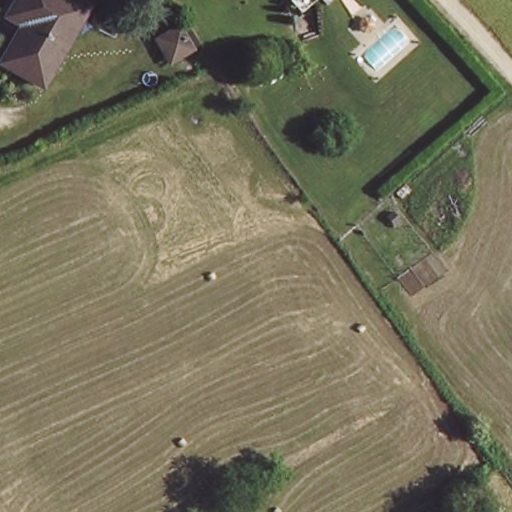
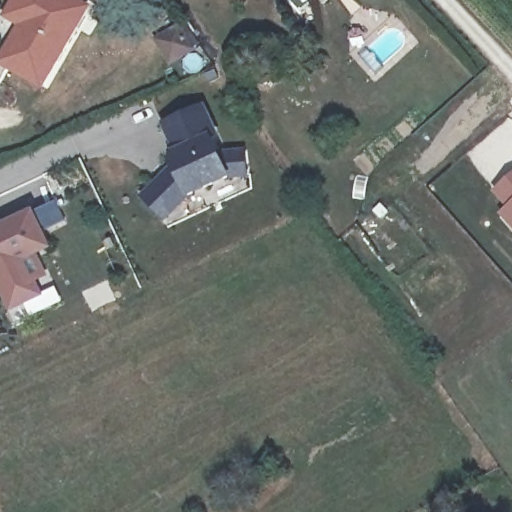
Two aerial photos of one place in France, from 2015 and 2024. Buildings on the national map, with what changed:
unchanged [(45,85),(5,61),(26,26),(10,16),(20,0),(77,0),(90,7),(45,85)]
new [(168,158),(168,154),(169,146),(172,145),(159,116),(198,99),(211,129),(205,130),(213,146),(238,145),(240,167),(223,169),(181,187),(158,210),(137,189),(168,158)]
new [(506,206),(493,192),(512,175),(512,229),(499,215),(506,206)]
new [(35,227),(41,239),(28,245),(38,268),(26,273),(33,287),(4,300),(0,291),(0,217),(25,205),(35,227)]

